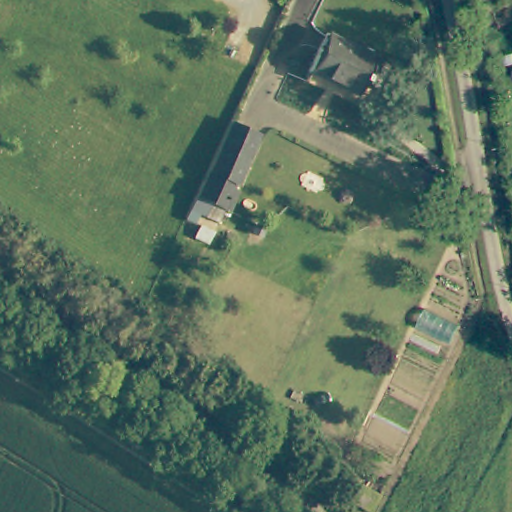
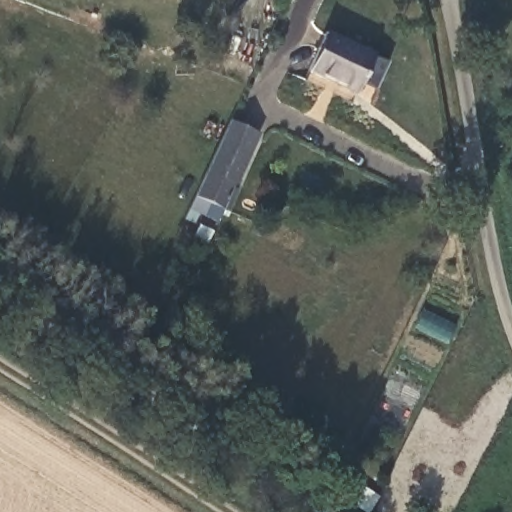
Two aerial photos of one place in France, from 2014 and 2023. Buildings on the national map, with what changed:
unchanged [(325,34),(386,63),(372,91),(359,84),(352,97),(306,74),(325,34)]
unchanged [(206,157),(224,117),(253,131),(232,176),(212,219),(200,213),(205,200),(189,193),(206,157)]

